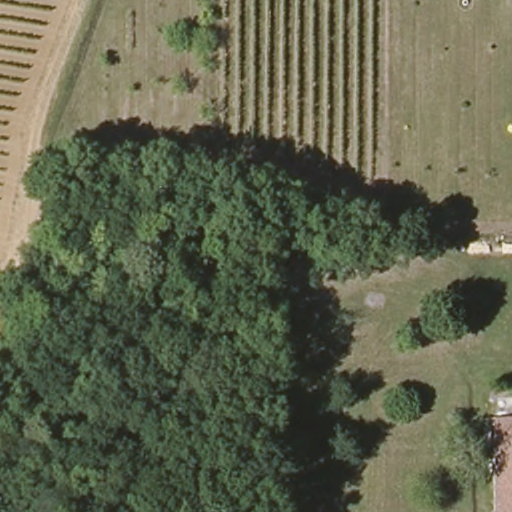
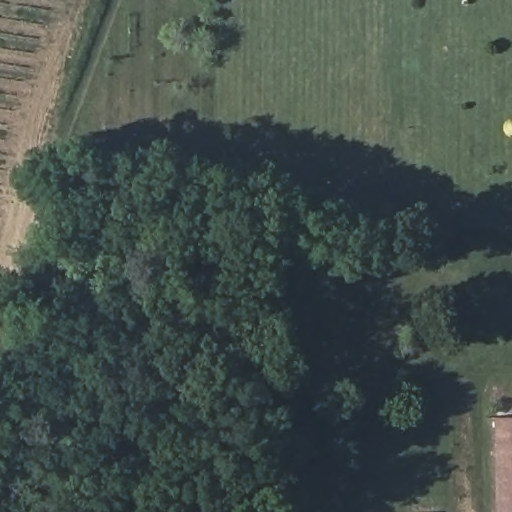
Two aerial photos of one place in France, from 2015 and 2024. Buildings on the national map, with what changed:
unchanged [(512,512),(503,512),(500,417),(512,417),(512,512)]

